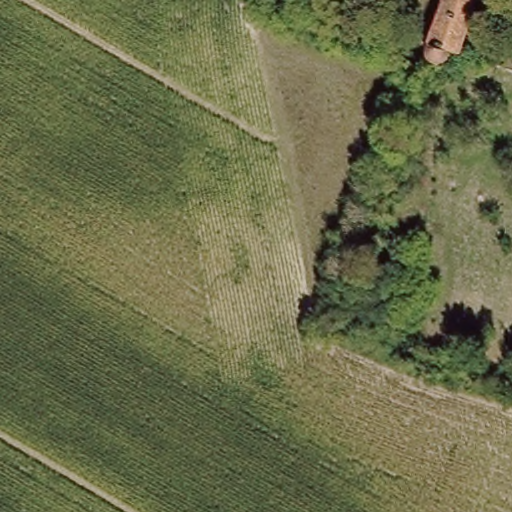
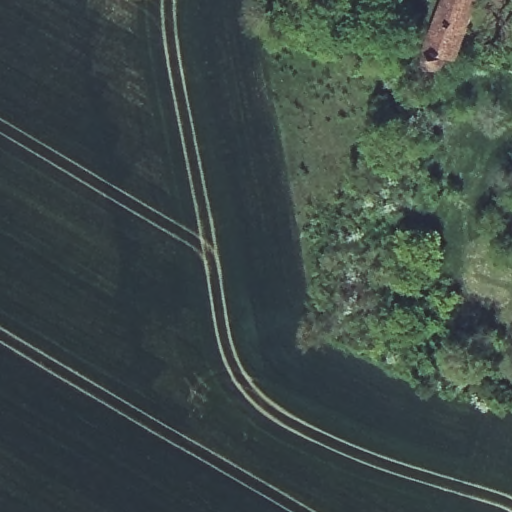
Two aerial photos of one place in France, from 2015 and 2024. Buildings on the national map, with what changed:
unchanged [(478,0),(462,50),(440,43),(434,57),(420,50),(439,0),(478,0)]

